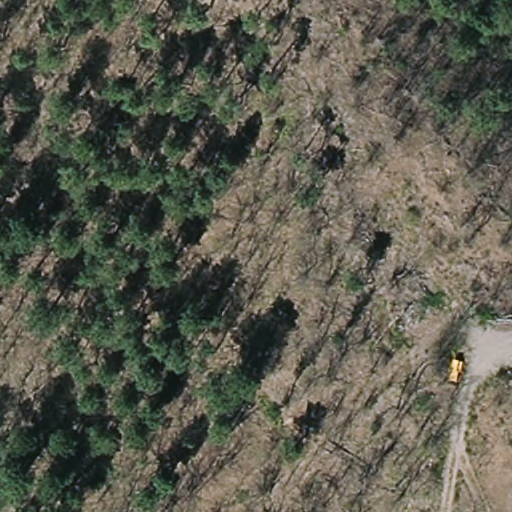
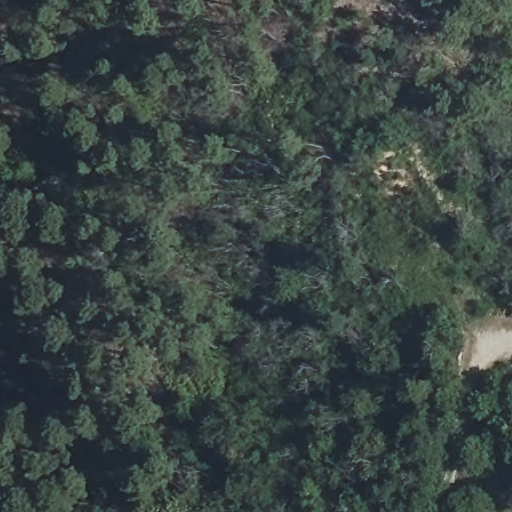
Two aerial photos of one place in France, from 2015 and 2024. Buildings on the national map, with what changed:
[]

